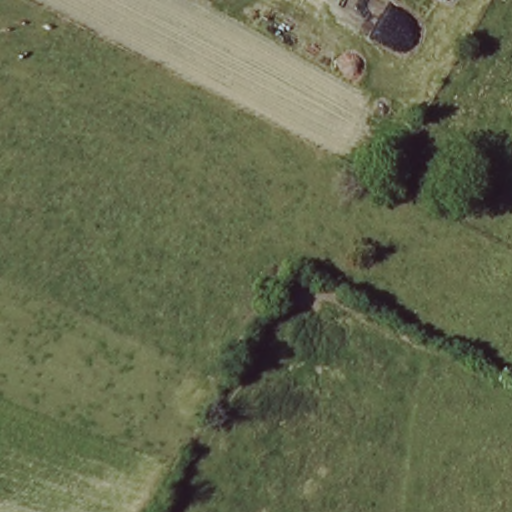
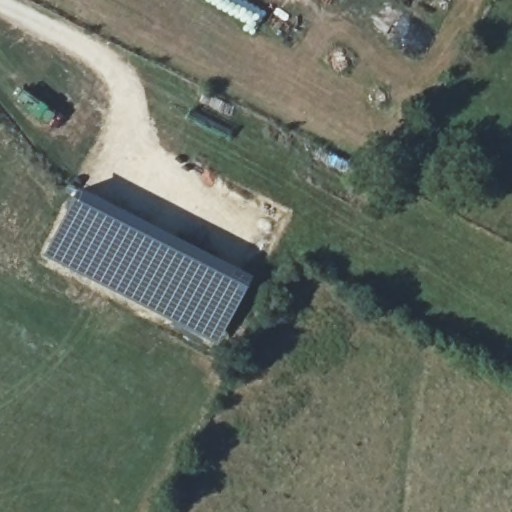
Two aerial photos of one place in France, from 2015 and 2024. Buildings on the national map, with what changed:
new [(76,187),(105,200),(103,202),(105,203),(102,207),(152,232),(154,229),(183,244),(207,256),(217,263),(220,258),(252,275),(215,347),(40,256),(76,187)]

